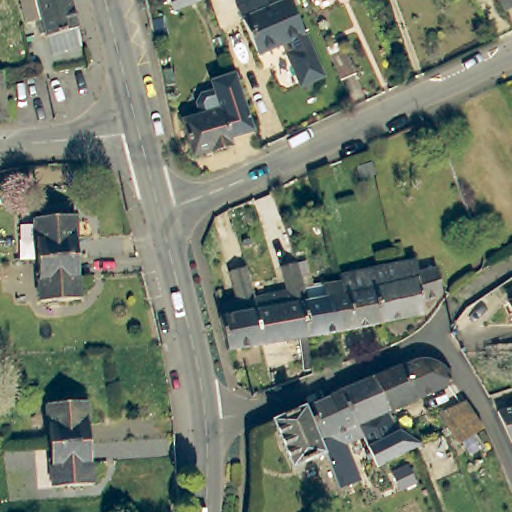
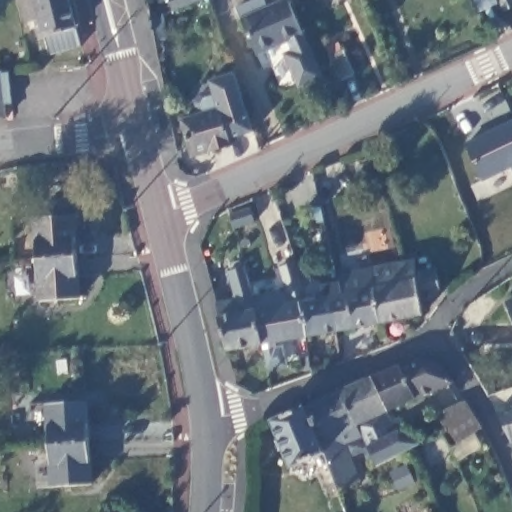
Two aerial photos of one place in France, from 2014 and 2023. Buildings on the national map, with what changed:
unchanged [(86,42),(55,51),(50,34),(49,34),(48,30),(44,31),(40,16),(31,19),(26,0),(75,0),(82,25),(86,42)]
unchanged [(195,0),(177,6),(172,8),(169,0),(195,0)]
unchanged [(270,0),(274,9),(293,1),(326,78),(304,87),(290,55),(296,52),(292,42),(262,55),(242,9),(263,0),(270,0)]
unchanged [(303,0),(313,0),(304,3),(303,0)]
unchanged [(499,0),(512,0),(512,7),(503,11),(499,0)]
unchanged [(354,75),(340,81),(330,56),(326,49),(338,44),(342,51),(344,50),(354,75)]
unchanged [(6,120),(0,121),(0,77),(2,76),(6,120)]
unchanged [(247,101),(251,111),(260,137),(259,137),(235,145),(237,152),(199,164),(198,164),(187,128),(188,127),(205,122),(205,121),(202,111),(208,100),(219,96),(216,87),(241,80),(247,101)]
new [(512,168),(483,181),(466,145),(512,124),(512,168)]
unchanged [(75,257),(38,260),(36,219),(76,216),(78,257),(75,257)]
unchanged [(81,298),(41,300),(38,260),(75,257),(78,257),(81,298)]
unchanged [(377,273),(405,267),(421,265),(423,276),(442,273),(447,295),(445,302),(427,307),(428,320),(387,328),(377,273)]
unchanged [(268,350),(258,302),(296,295),(288,272),(303,267),(308,280),(313,306),(307,308),(313,341),(268,350)]
unchanged [(234,356),(221,310),(242,305),(237,275),(252,271),(258,302),(268,350),(234,356)]
unchanged [(332,290),(341,288),(345,288),(343,279),(377,273),(387,328),(340,336),(332,290)]
unchanged [(340,336),(313,341),(307,308),(313,306),(308,280),(316,279),(319,292),(332,290),(340,336)]
unchanged [(512,301),(512,309),(509,302),(512,301)]
unchanged [(373,378),(420,358),(430,358),(439,362),(446,367),(456,383),(390,411),(373,378)]
unchanged [(357,425),(355,426),(337,394),(373,378),(390,411),(357,425)]
unchanged [(306,407),(337,394),(355,426),(337,433),(319,441),(306,407)]
unchanged [(51,445),(49,405),(87,402),(90,443),(51,445)]
unchanged [(448,431),(443,421),(440,418),(437,414),(462,404),(467,402),(477,417),(448,431)]
unchanged [(335,512),(334,512),(315,458),(292,467),(272,422),(306,407),(319,441),(327,461),(328,465),(338,490),(346,508),(335,512)]
unchanged [(497,417),(512,414),(512,449),(512,448),(497,417)]
unchanged [(92,484),(54,486),(51,445),(90,443),(92,484)]

